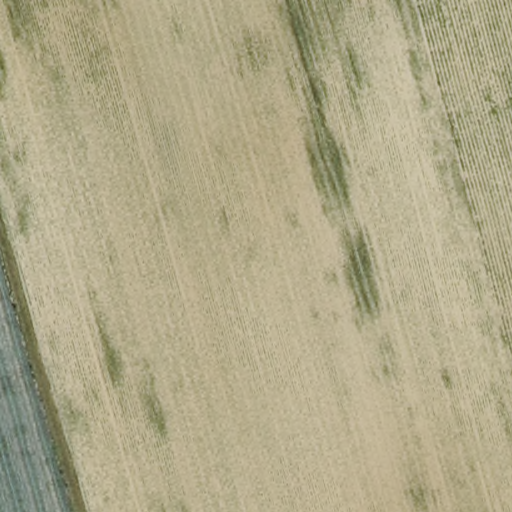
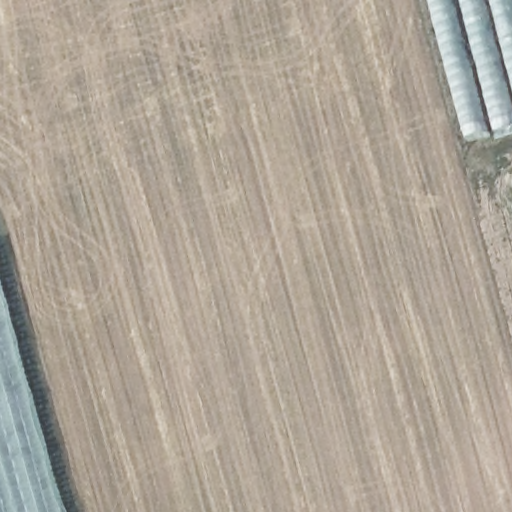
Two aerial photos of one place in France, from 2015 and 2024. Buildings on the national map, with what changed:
new [(425,0),(512,0),(512,127),(463,144),(425,0)]
unchanged [(68,512),(0,512),(0,266),(68,512)]

